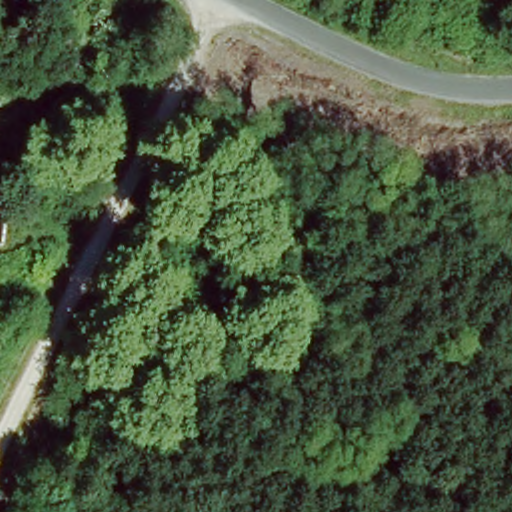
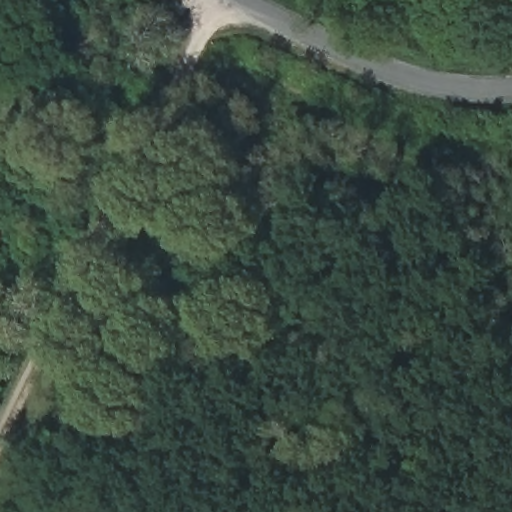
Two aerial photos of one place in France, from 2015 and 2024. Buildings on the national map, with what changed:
unchanged [(0,213),(4,214),(0,247),(0,213)]

